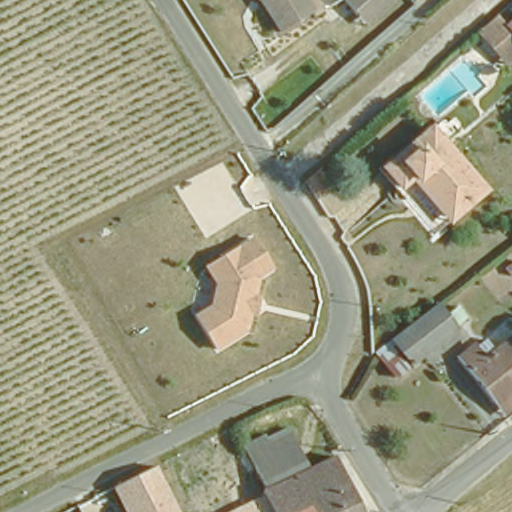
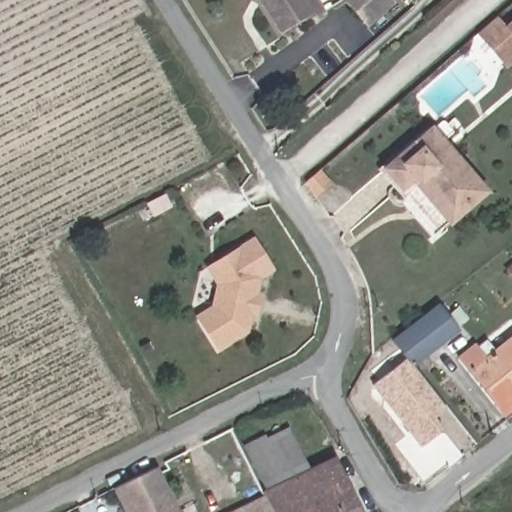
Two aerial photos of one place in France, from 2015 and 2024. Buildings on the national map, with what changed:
unchanged [(260,2),(256,0),(305,0),(313,13),(279,34),(260,2)]
unchanged [(366,27),(341,0),(391,0),(395,4),(366,27)]
unchanged [(496,49),(482,32),(477,26),(479,24),(494,10),(500,17),(502,20),(506,20),(512,15),(512,54),(505,59),(496,49)]
unchanged [(479,182),(446,212),(433,198),(436,194),(416,171),(411,175),(407,171),(394,181),(379,164),(425,122),(479,182)]
unchanged [(257,281),(256,294),(258,295),(254,316),(250,316),(247,332),(215,351),(194,314),(211,304),(214,282),(204,266),(252,235),(273,271),(257,281)]
unchanged [(456,330),(442,341),(411,366),(392,341),(437,305),(456,330)]
unchanged [(455,355),(483,331),(495,345),(512,326),(512,406),(501,414),(455,355)]
new [(433,418),(443,430),(421,447),(371,384),(406,359),(411,366),(445,408),(433,418)]
unchanged [(251,454),(269,444),(263,429),(286,418),(308,467),(267,487),(265,482),(251,454)]
unchanged [(337,454),(362,512),(307,512),(305,506),(291,512),(278,512),(267,487),(308,467),(337,454)]
unchanged [(123,512),(111,486),(158,462),(181,512),(123,512)]
unchanged [(219,512),(252,497),(249,489),(265,482),(267,487),(278,512),(219,512)]
unchanged [(307,512),(291,512),(305,506),(307,512)]

